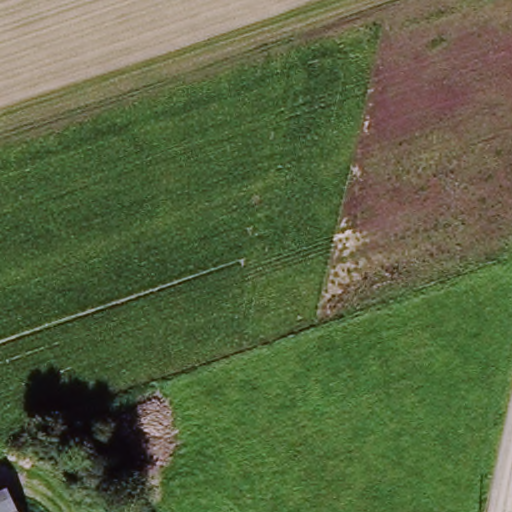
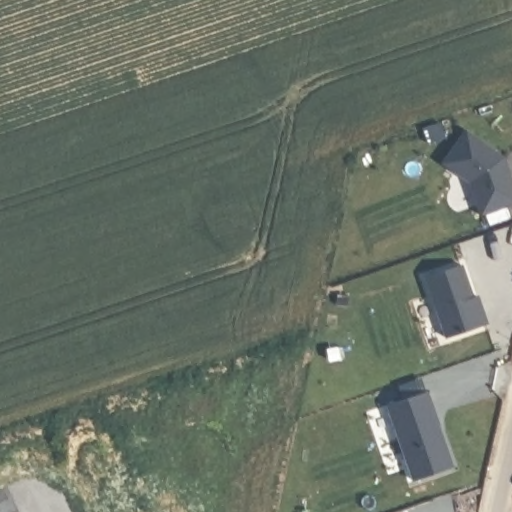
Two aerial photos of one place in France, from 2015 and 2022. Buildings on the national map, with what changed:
new [(504,157),(506,163),(504,164),(506,169),(508,169),(512,180),(512,204),(483,215),(472,182),(445,164),(467,132),(504,157)]
new [(475,297),(480,296),(483,307),(490,325),(448,339),(427,277),(463,265),(475,297)]
new [(429,392),(442,427),(438,427),(440,435),(442,435),(455,468),(417,482),(390,407),(429,392)]
unchanged [(6,492),(15,512),(0,512),(0,495),(6,492)]

